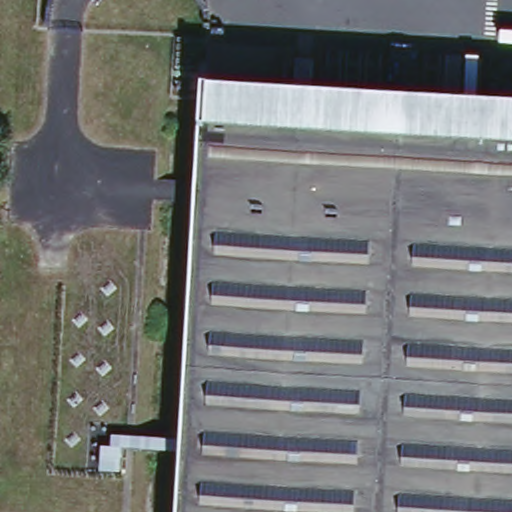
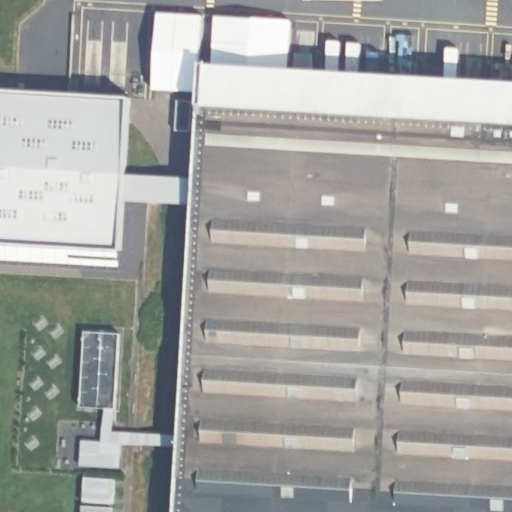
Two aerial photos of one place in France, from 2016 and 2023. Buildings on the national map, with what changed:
unchanged [(203,66),(202,76),(381,82),(383,72),(385,67),(390,63),(397,63),(404,65),(408,70),(414,86),(512,90),(512,512),(170,512),(186,217),(188,180),(195,66),(203,66)]
new [(132,176),(188,180),(186,217),(128,215),(123,265),(0,259),(0,93),(135,100),(132,176)]
new [(113,337),(109,409),(75,408),(79,335),(113,337)]

